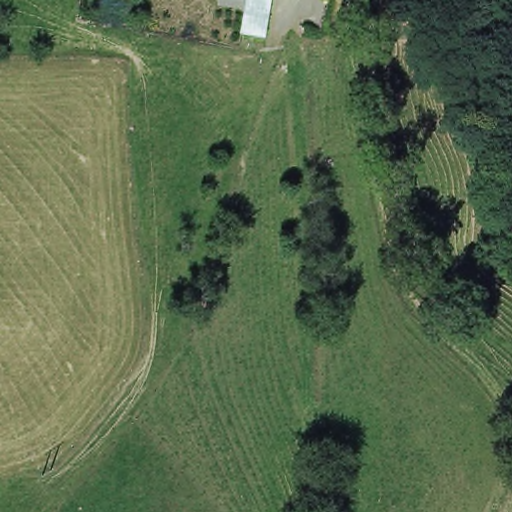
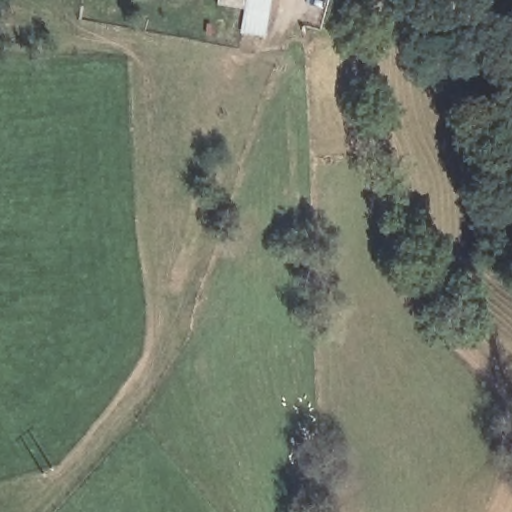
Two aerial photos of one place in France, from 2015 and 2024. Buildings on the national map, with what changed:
unchanged [(244,32),(248,7),(220,4),(221,0),(275,0),(268,37),(244,32)]

